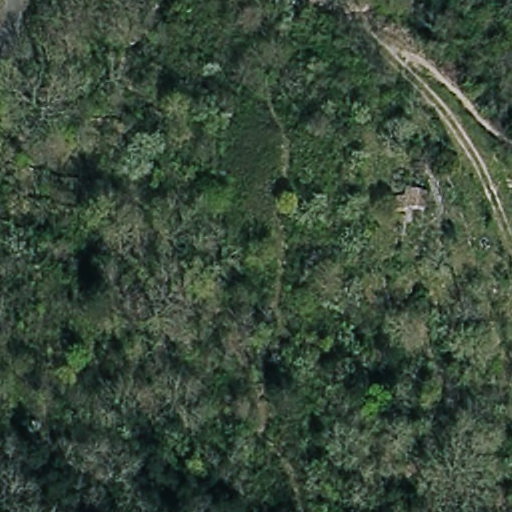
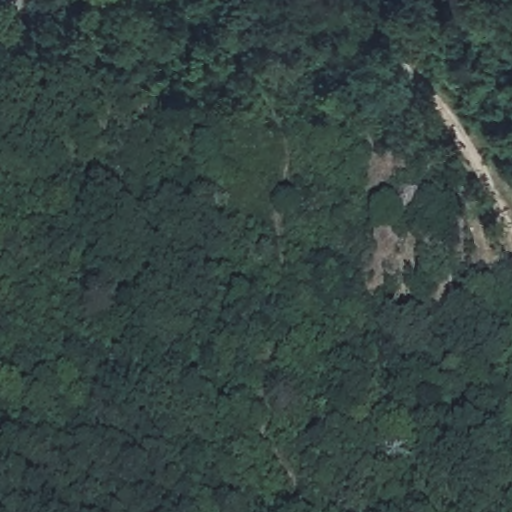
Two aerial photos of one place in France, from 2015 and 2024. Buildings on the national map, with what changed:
unchanged [(427,188),(441,190),(439,207),(429,206),(416,205),(418,187),(427,188)]

